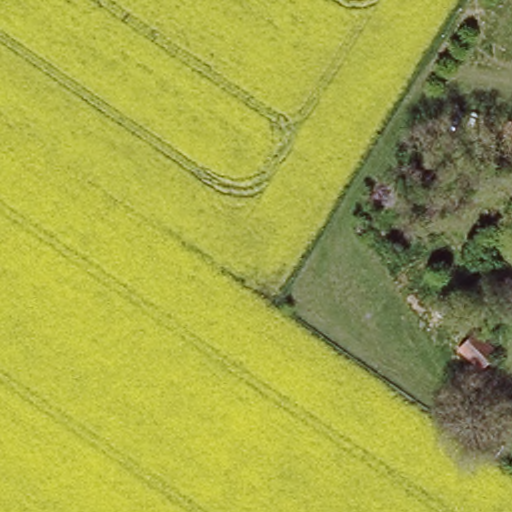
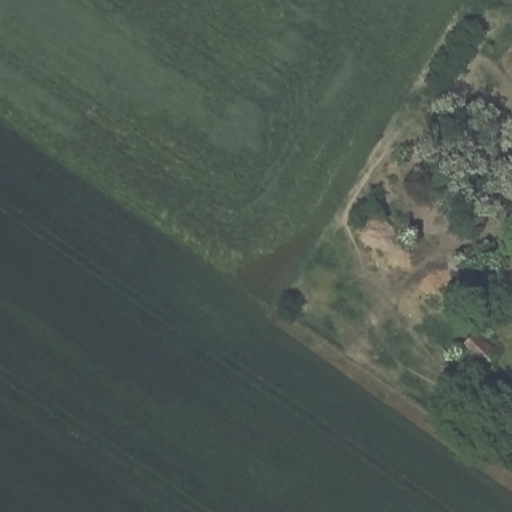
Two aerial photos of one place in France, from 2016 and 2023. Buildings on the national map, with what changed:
unchanged [(481,359),(466,377),(438,356),(455,338),(481,359)]

